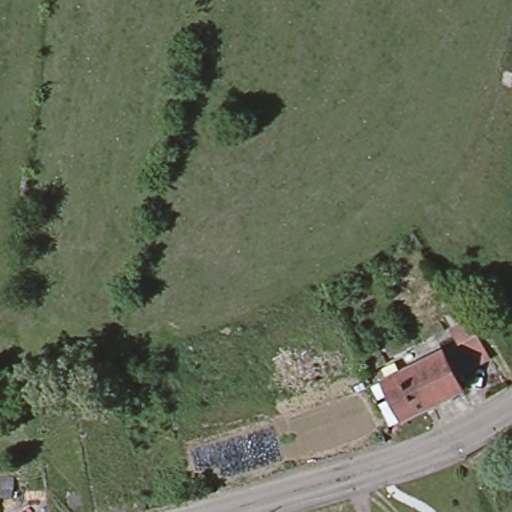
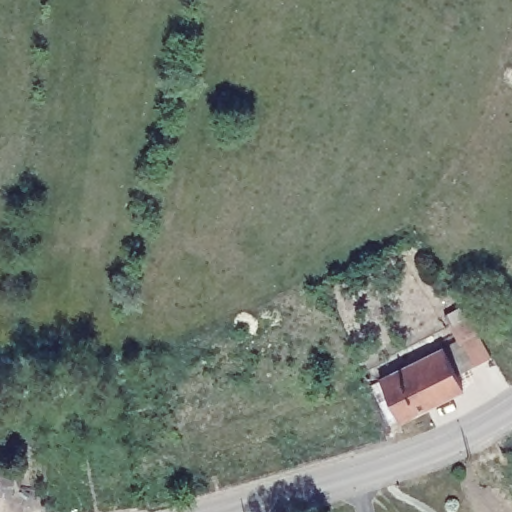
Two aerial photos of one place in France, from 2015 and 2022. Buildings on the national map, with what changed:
unchanged [(477,332),(492,357),(477,367),(462,340),(477,332)]
unchanged [(444,349),(464,389),(429,407),(409,366),(444,349)]
unchanged [(400,421),(381,380),(409,366),(429,407),(400,421)]
unchanged [(295,368),(305,390),(289,397),(280,374),(295,368)]
unchanged [(12,498),(0,497),(0,477),(14,478),(12,498)]

